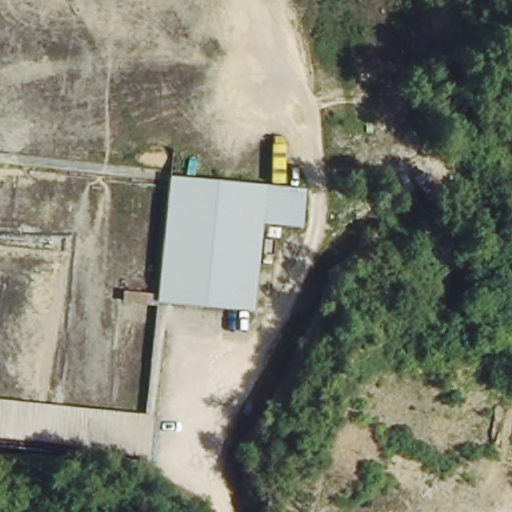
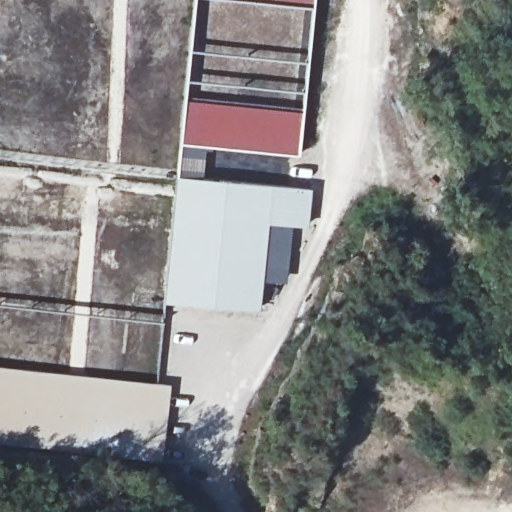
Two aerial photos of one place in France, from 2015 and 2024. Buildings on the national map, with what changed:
new [(181,143),(195,0),(314,0),(298,154),(181,143)]
unchanged [(179,175),(313,188),(310,224),(270,223),(264,307),(165,299),(179,175)]
new [(167,413),(0,396),(0,367),(170,384),(167,413)]
unchanged [(0,448),(0,396),(167,413),(162,459),(0,448)]

